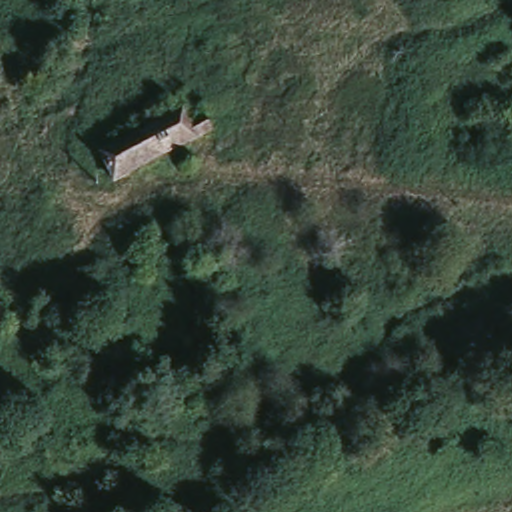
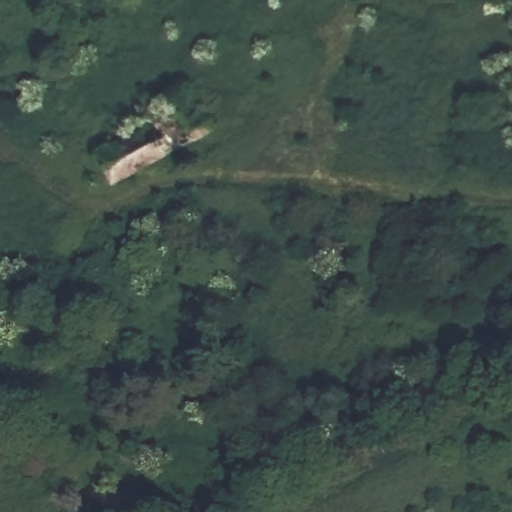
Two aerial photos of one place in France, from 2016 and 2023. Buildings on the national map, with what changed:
unchanged [(104,186),(92,160),(119,146),(112,131),(129,126),(132,140),(156,127),(149,114),(176,103),(186,123),(203,115),(213,134),(104,186)]
unchanged [(118,250),(94,260),(91,252),(114,242),(118,250)]
unchanged [(0,325),(0,304),(9,320),(0,325)]

